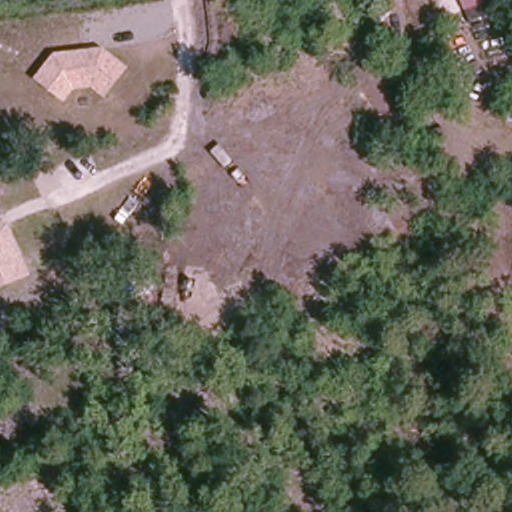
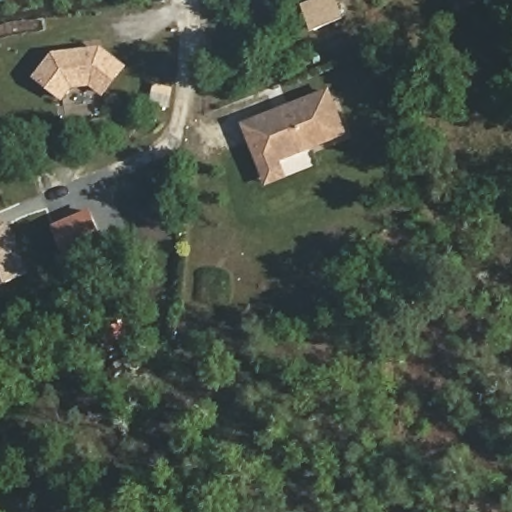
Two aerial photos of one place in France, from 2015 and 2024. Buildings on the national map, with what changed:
new [(301,1),(305,0),(337,0),(344,21),(313,33),(301,1)]
unchanged [(54,53),(103,47),(129,68),(106,99),(91,87),(74,89),(63,102),(33,79),(54,53)]
new [(288,179),(267,187),(242,124),(330,88),(349,136),(282,162),(288,179)]
new [(65,256),(52,227),(92,210),(105,239),(65,256)]
unchanged [(0,282),(0,220),(7,222),(24,267),(0,282)]

